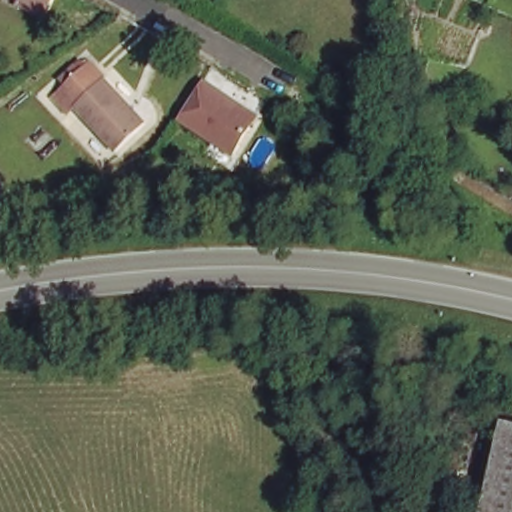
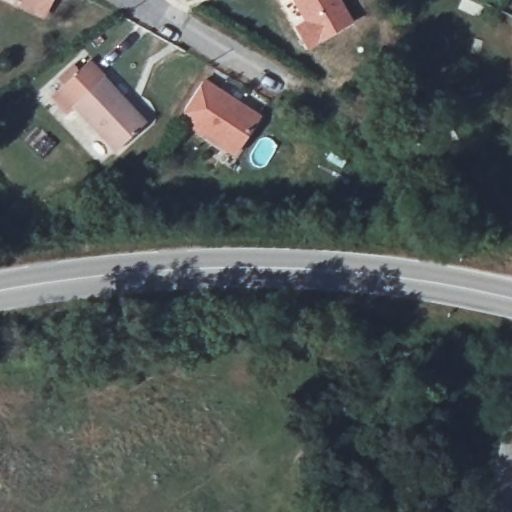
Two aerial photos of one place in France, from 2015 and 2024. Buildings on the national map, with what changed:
unchanged [(19,1),(20,0),(55,0),(49,11),(46,16),(19,1)]
new [(353,22),(307,51),(292,25),(302,19),(291,0),(341,0),(353,22)]
unchanged [(85,63),(148,118),(120,149),(57,95),(85,63)]
unchanged [(259,111),(236,147),(180,112),(197,85),(203,76),(259,111)]
unchanged [(512,512),(488,512),(507,417),(512,419),(512,512)]

